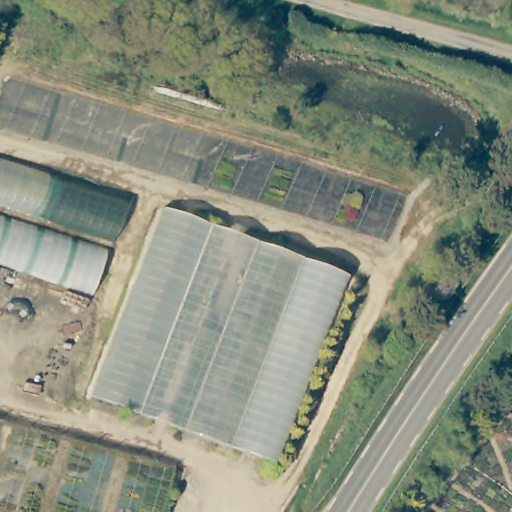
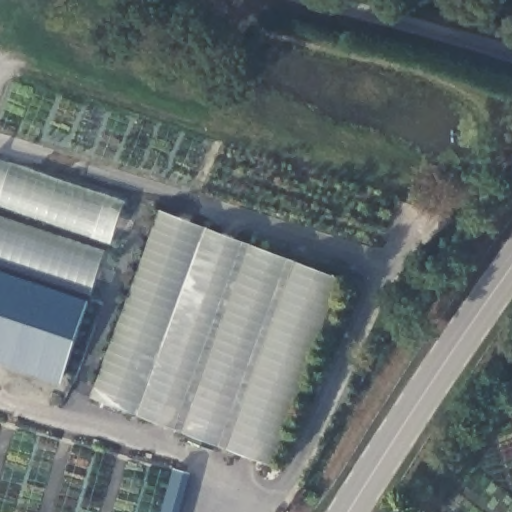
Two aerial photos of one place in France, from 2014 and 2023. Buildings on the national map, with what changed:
unchanged [(110,245),(93,297),(0,267),(0,164),(131,203),(118,246),(110,245)]
unchanged [(349,278),(280,472),(96,405),(166,213),(349,278)]
new [(0,270),(91,301),(61,384),(0,362),(0,270)]
new [(176,468),(190,472),(180,512),(164,512),(176,468)]

